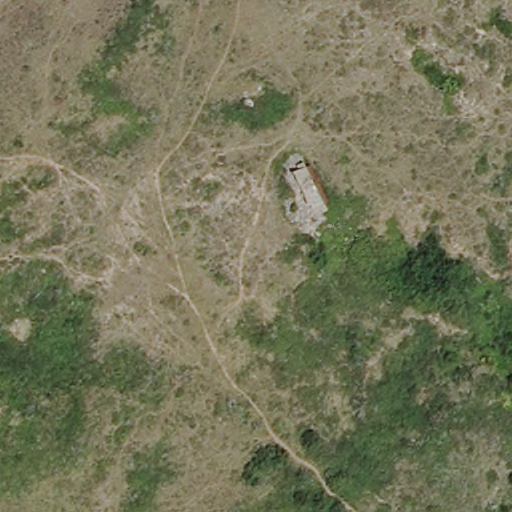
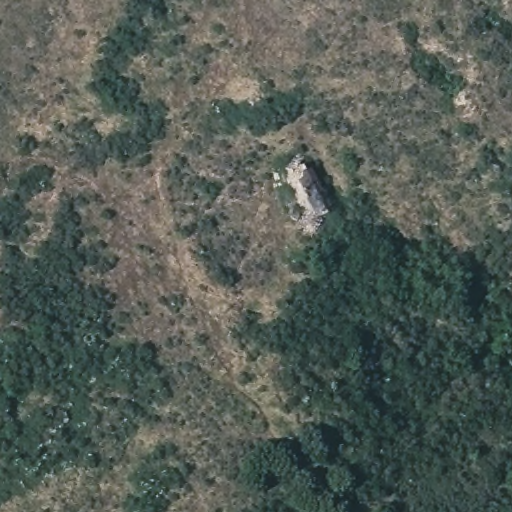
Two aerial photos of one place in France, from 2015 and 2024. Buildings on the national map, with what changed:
unchanged [(311,168),(326,210),(303,218),(285,176),(311,168)]

